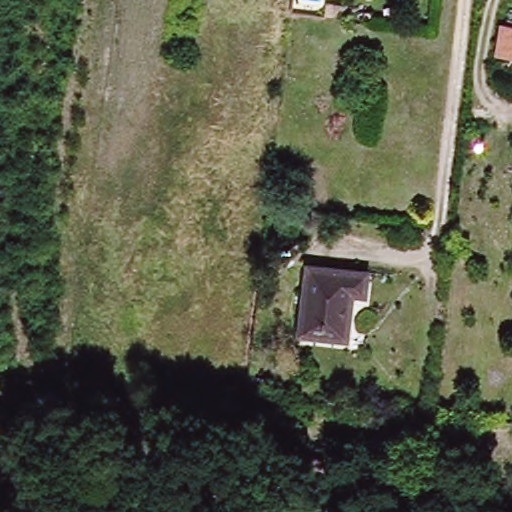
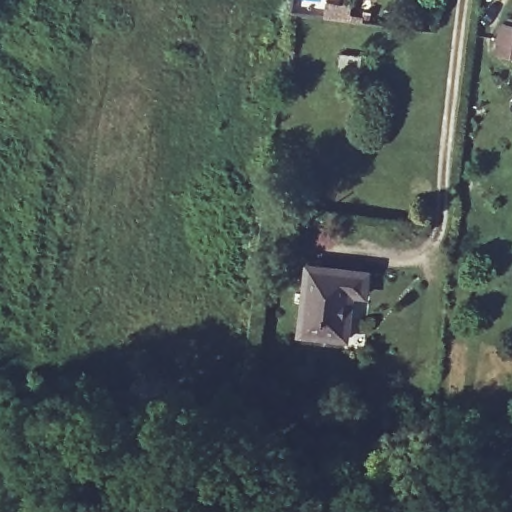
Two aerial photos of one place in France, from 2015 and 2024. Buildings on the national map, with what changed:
unchanged [(512,28),(512,52),(509,52),(512,28)]
unchanged [(370,267),(368,286),(355,285),(350,335),(302,331),(307,260),(370,267)]

